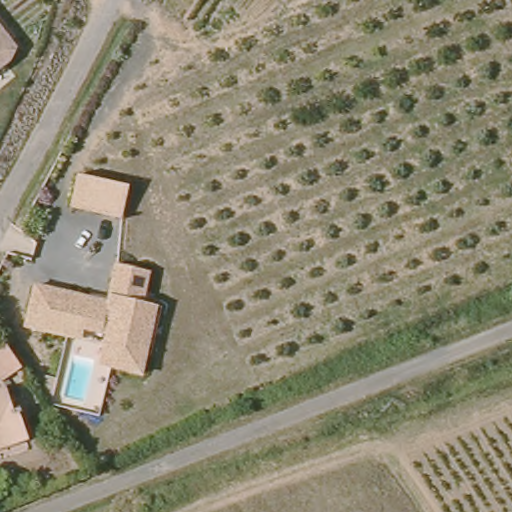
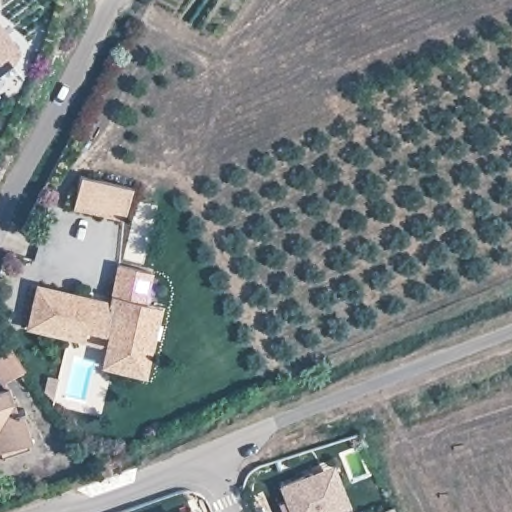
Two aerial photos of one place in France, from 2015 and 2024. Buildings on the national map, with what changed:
unchanged [(0,67),(0,22),(20,51),(0,67)]
unchanged [(129,189),(120,219),(68,209),(77,179),(129,189)]
unchanged [(152,276),(148,305),(158,308),(144,377),(97,370),(101,347),(25,333),(35,286),(106,301),(114,267),(152,276)]
unchanged [(19,366),(2,378),(0,375),(0,344),(4,342),(19,366)]
unchanged [(13,414),(18,414),(28,443),(4,451),(0,453),(0,392),(4,391),(13,414)]
new [(285,501),(280,486),(334,464),(353,512),(282,512),(278,503),(285,501)]
new [(190,511),(190,512),(187,512),(190,511)]

